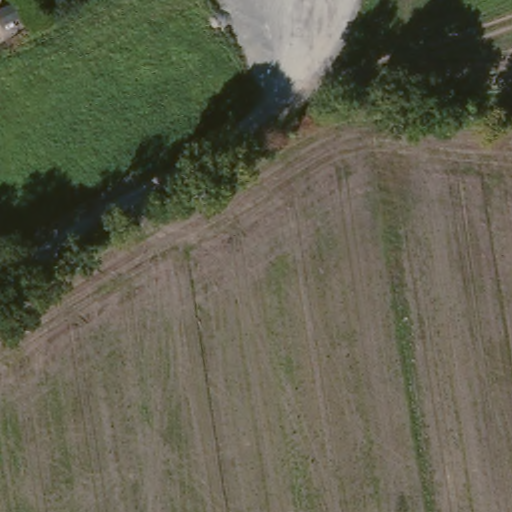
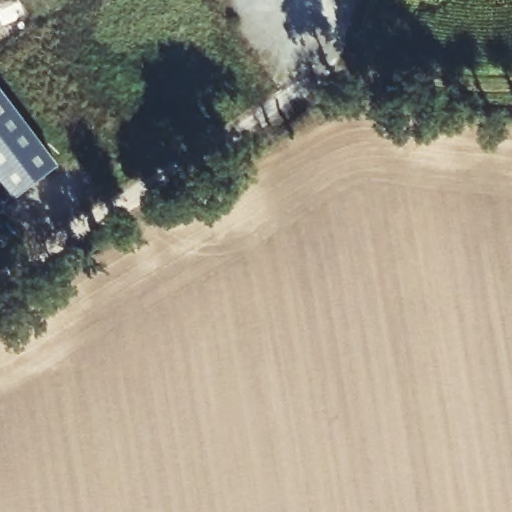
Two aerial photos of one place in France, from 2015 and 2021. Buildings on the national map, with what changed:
new [(57,168),(15,200),(0,180),(0,93),(57,168)]

